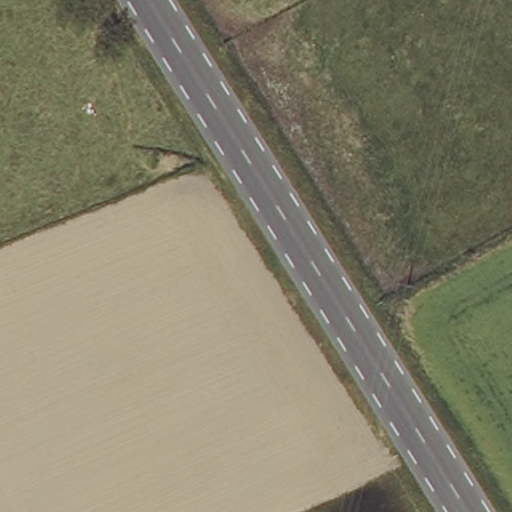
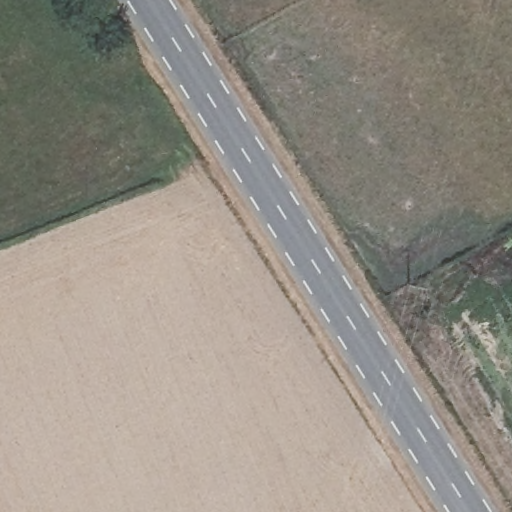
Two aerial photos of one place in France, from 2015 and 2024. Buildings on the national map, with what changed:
[]

